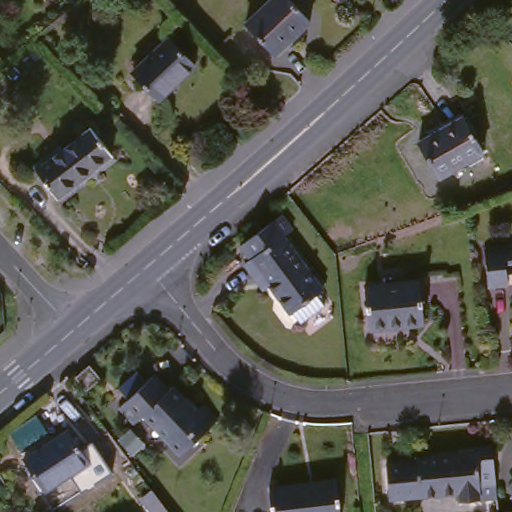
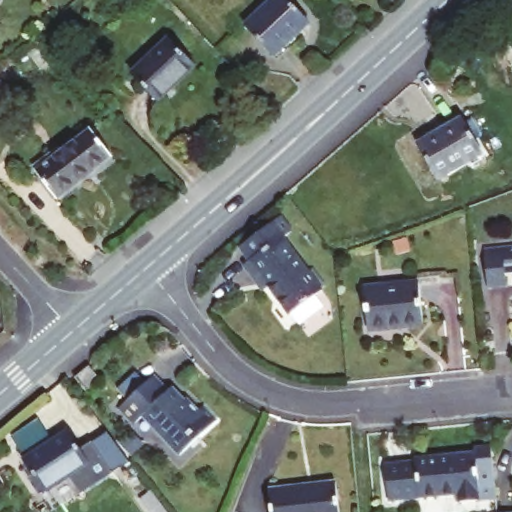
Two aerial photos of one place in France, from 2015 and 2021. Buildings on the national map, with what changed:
unchanged [(268,65),(240,35),(276,4),(303,32),(268,65)]
unchanged [(115,81),(154,45),(180,74),(142,109),(115,81)]
unchanged [(415,148),(459,125),(480,161),(436,186),(415,148)]
unchanged [(41,161),(47,169),(89,132),(112,159),(65,200),(59,205),(36,180),(29,172),(41,161)]
unchanged [(292,317),(290,319),(272,296),(267,299),(255,285),(244,271),(250,266),(240,251),(279,222),(291,237),(283,242),(310,276),(316,272),(328,287),(322,292),(323,294),(317,298),(326,311),(302,329),(292,317)]
unchanged [(503,302),(484,302),(480,261),(512,258),(512,291),(503,292),(503,302)]
unchanged [(363,338),(357,294),(411,289),(416,332),(363,338)]
unchanged [(85,388),(75,377),(87,366),(96,378),(85,388)]
unchanged [(173,467),(137,427),(128,435),(111,416),(150,381),(188,422),(198,413),(213,431),(173,467)]
unchanged [(42,507),(19,472),(47,452),(44,447),(59,437),(87,478),(42,507)]
unchanged [(471,445),(490,442),(491,460),(493,486),(476,487),(477,500),(457,502),(456,495),(387,501),(387,498),(383,462),(415,459),(415,455),(471,450),(471,445)]
unchanged [(2,487),(0,488),(0,485),(2,487)]
unchanged [(137,497),(150,488),(167,512),(148,512),(137,497)]
unchanged [(266,496),(332,488),(335,512),(268,512),(266,496)]

